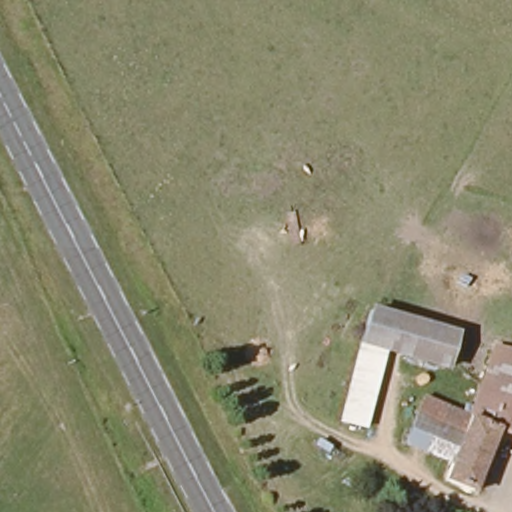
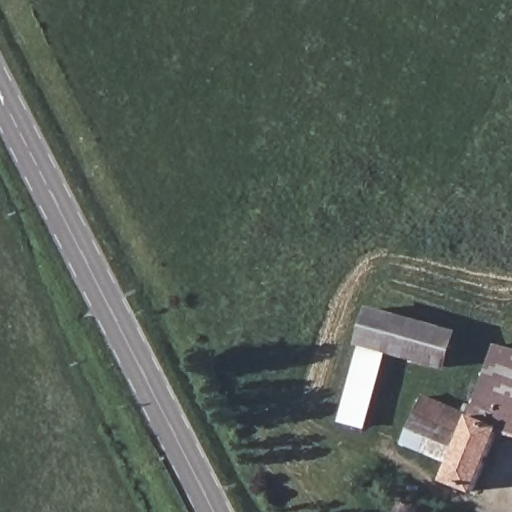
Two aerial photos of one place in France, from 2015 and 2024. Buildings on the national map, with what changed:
unchanged [(449,376),(391,358),(365,434),(338,427),(359,352),(372,311),(461,334),(449,376)]
unchanged [(478,491),(449,483),(453,470),(469,423),(493,352),(512,356),(512,433),(501,430),(478,491)]
unchanged [(410,448),(424,409),(469,423),(453,470),(408,456),(410,448)]

